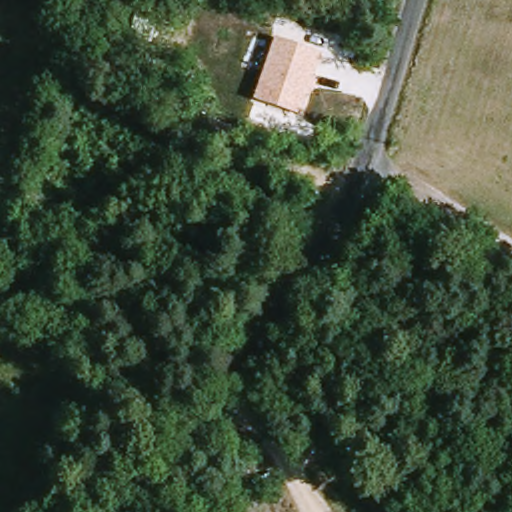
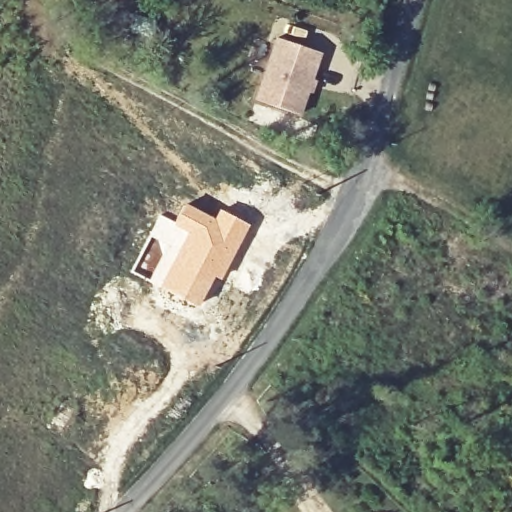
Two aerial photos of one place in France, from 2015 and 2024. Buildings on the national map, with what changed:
unchanged [(322,52),(302,114),(255,99),(276,38),(322,52)]
new [(168,248),(166,252),(149,236),(159,213),(173,220),(185,201),(214,216),(219,207),(250,223),(221,280),(215,276),(198,306),(157,284),(173,250),(168,248)]

